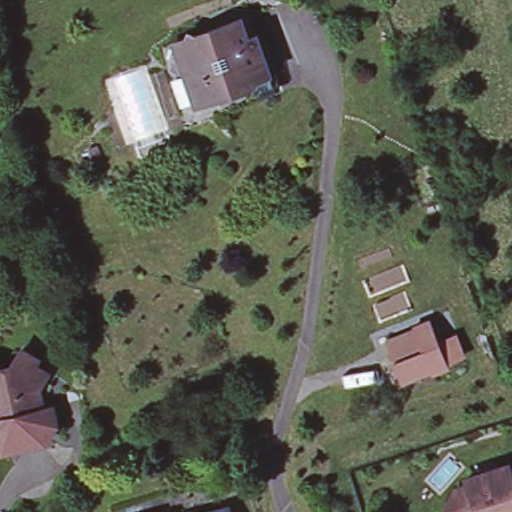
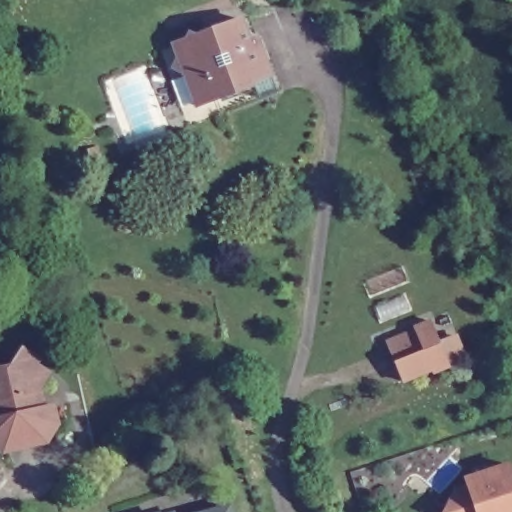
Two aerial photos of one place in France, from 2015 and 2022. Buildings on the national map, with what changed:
unchanged [(196,99),(195,96),(181,101),(171,75),(185,70),(184,67),(174,62),(191,28),(195,30),(214,24),(242,14),(251,11),(258,31),(268,59),(271,70),(276,82),(277,86),(259,92),(258,88),(238,95),(221,101),(217,92),(196,99)]
unchanged [(433,376),(431,372),(403,384),(396,362),(387,341),(414,329),(414,326),(432,320),(451,370),(433,376)]
unchanged [(15,377),(27,357),(43,367),(40,372),(53,381),(39,402),(43,419),(61,431),(49,450),(6,460),(0,456),(0,431),(0,375),(7,379),(15,377)]
unchanged [(459,512),(454,499),(461,486),(474,481),(473,475),(512,462),(512,512),(459,512)]
unchanged [(226,512),(220,512),(226,510),(226,512)]

